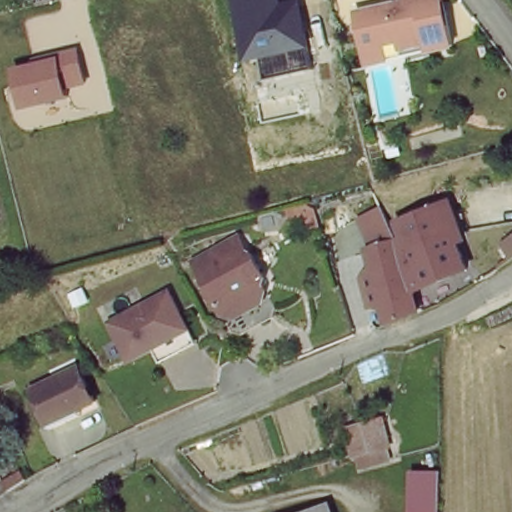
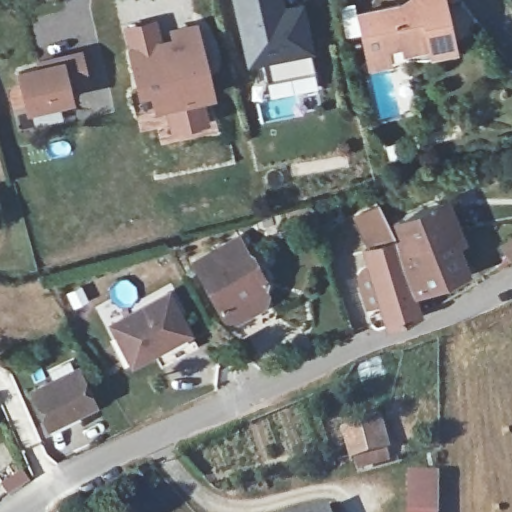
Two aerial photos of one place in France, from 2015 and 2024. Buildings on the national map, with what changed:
unchanged [(261,59),(246,62),(233,0),(283,0),(284,5),(302,0),(315,69),(265,80),(261,59)]
unchanged [(359,17),(415,3),(415,0),(435,0),(442,30),(450,27),(455,47),(433,53),(372,67),(368,52),(359,17)]
new [(218,93),(207,96),(213,119),(179,126),(174,103),(163,106),(159,89),(146,92),(137,51),(139,50),(134,29),(160,22),(166,44),(182,40),(180,31),(202,25),(218,93)]
unchanged [(90,86),(71,91),(73,99),(25,110),(15,69),(34,64),(33,60),(81,49),(90,86)]
unchanged [(460,237),(477,273),(432,289),(415,255),(409,244),(399,227),(446,209),(460,237)]
unchanged [(376,297),(385,293),(369,254),(375,252),(364,222),(388,212),(402,246),(408,258),(430,312),(398,324),(390,305),(381,308),(376,297)]
new [(512,236),(512,254),(503,244),(512,236)]
unchanged [(273,320),(242,338),(233,336),(227,326),(192,266),(236,241),(246,257),(248,256),(263,282),(261,288),(269,302),(275,311),(273,320)]
demolished [(512,249),(512,265),(504,256),(512,249)]
unchanged [(156,357),(148,343),(127,356),(105,318),(163,286),(184,324),(192,337),(156,357)]
unchanged [(47,427),(43,417),(32,387),(81,371),(94,405),(75,412),(76,416),(47,427)]
unchanged [(355,471),(352,459),(344,432),(380,422),(388,449),(390,460),(355,471)]
unchanged [(445,512),(417,512),(419,471),(447,472),(445,512)]
unchanged [(334,503),(337,512),(310,512),(334,503)]

